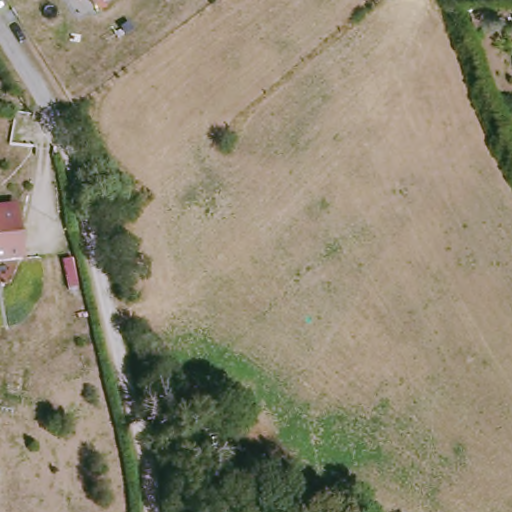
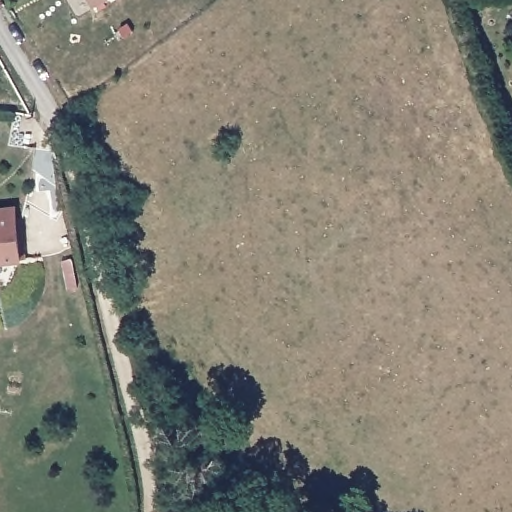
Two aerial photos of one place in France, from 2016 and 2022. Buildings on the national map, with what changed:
unchanged [(90,0),(107,0),(95,8),(90,0)]
unchanged [(0,263),(0,211),(16,209),(17,219),(22,261),(0,263)]

